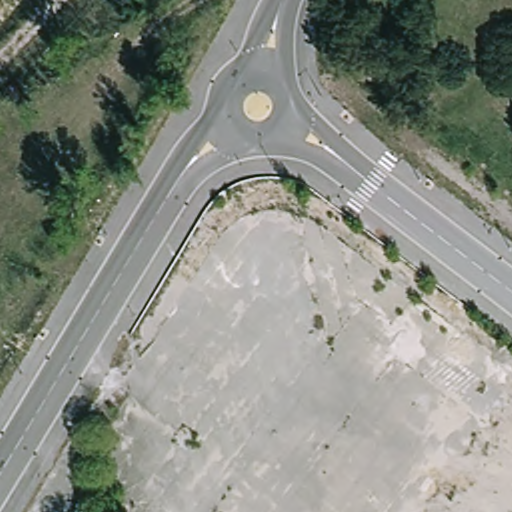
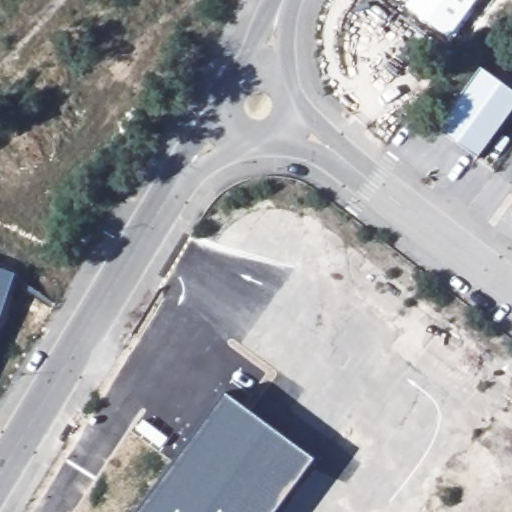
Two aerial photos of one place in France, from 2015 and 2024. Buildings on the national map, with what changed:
unchanged [(452,26),(452,27),(414,0),(472,0),(477,3),(457,29),(452,26)]
new [(436,129),(480,68),(512,92),(512,109),(475,159),(436,129)]
new [(15,273),(0,318),(0,269),(15,273)]
new [(275,512),(137,512),(226,394),(314,459),(275,512)]

